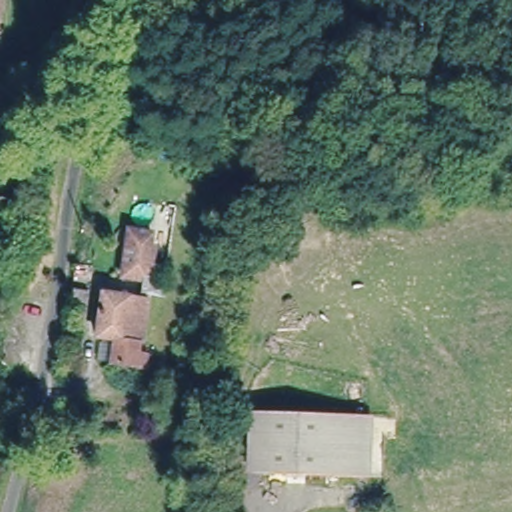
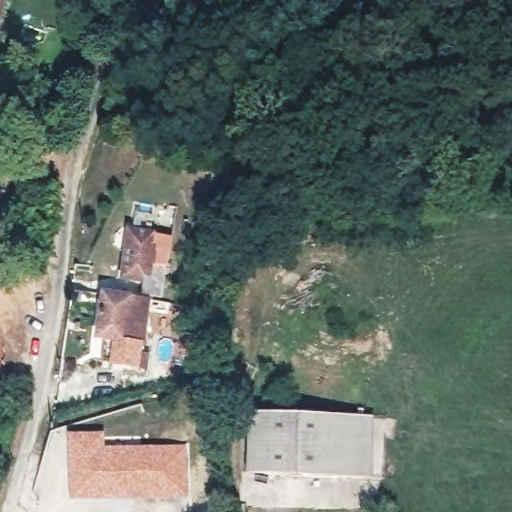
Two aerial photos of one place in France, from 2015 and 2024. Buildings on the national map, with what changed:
unchanged [(0,17),(0,0),(5,0),(0,17)]
unchanged [(153,230),(152,244),(156,244),(155,259),(168,260),(165,292),(151,290),(152,277),(125,275),(129,228),(153,230)]
unchanged [(150,297),(145,340),(140,339),(139,349),(144,350),(142,357),(115,355),(115,336),(99,335),(104,292),(150,297)]
unchanged [(375,474),(242,473),(242,411),(376,416),(375,474)]
new [(103,431),(104,446),(187,443),(189,498),(69,500),(66,432),(103,431)]

